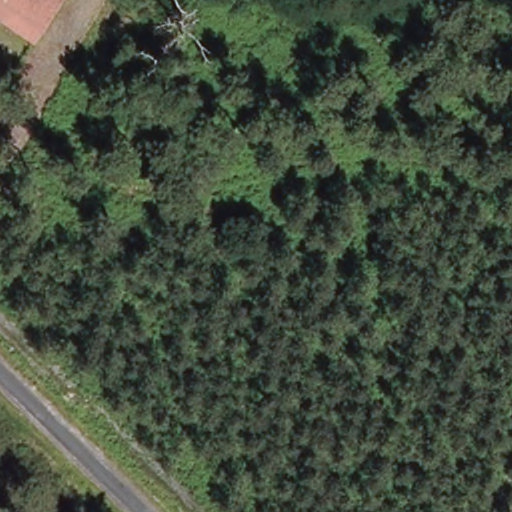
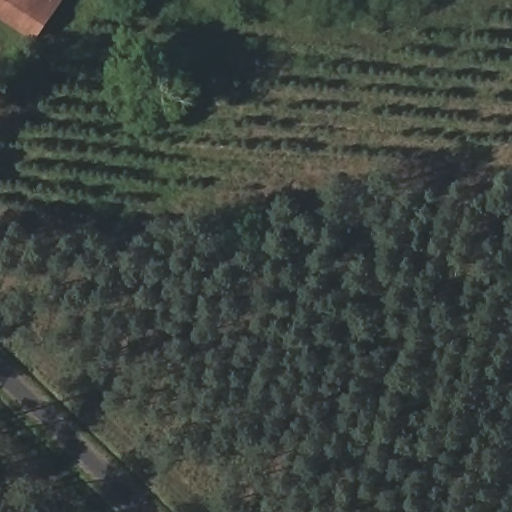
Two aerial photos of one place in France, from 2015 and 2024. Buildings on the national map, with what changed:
unchanged [(0,0),(59,0),(28,46),(0,27),(0,0)]

